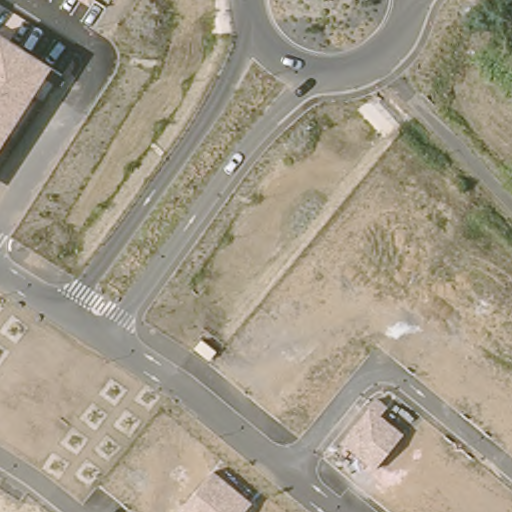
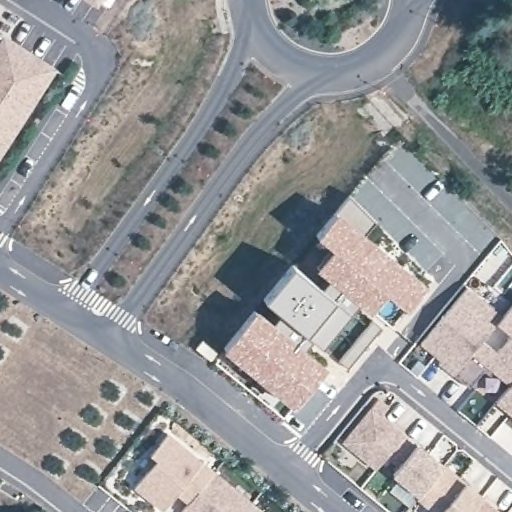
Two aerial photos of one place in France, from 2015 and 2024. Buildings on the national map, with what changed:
unchanged [(94,3),(89,0),(96,0),(94,3)]
unchanged [(0,151),(0,33),(1,32),(54,65),(0,151)]
new [(226,347),(293,267),(305,276),(332,246),(318,235),(350,195),(375,222),(365,237),(426,287),(407,310),(385,292),(372,310),(359,300),(348,310),(341,305),(313,340),(308,333),(299,346),(325,369),(295,404),(226,347)]
new [(440,362),(448,352),(442,346),(435,355),(422,343),(467,287),(502,316),(497,322),(483,339),(454,375),(440,362)]
new [(502,316),(512,304),(512,335),(497,322),(502,316)]
new [(485,371),(470,387),(454,375),(483,339),(497,352),(512,335),(512,383),(511,384),(487,363),(494,370),(490,375),(485,371)]
new [(512,383),(512,414),(497,402),(512,383)]
unchanged [(377,468),(343,442),(377,397),(390,407),(382,416),(405,433),(377,468)]
new [(188,502),(177,492),(162,511),(135,487),(158,460),(151,453),(169,432),(215,472),(188,502)]
new [(484,496),(503,512),(438,512),(418,496),(393,476),(399,467),(387,456),(405,433),(418,443),(484,496)]
unchanged [(183,512),(181,511),(215,472),(253,502),(244,512),(183,512)]
new [(244,512),(253,502),(266,512),(244,512)]

